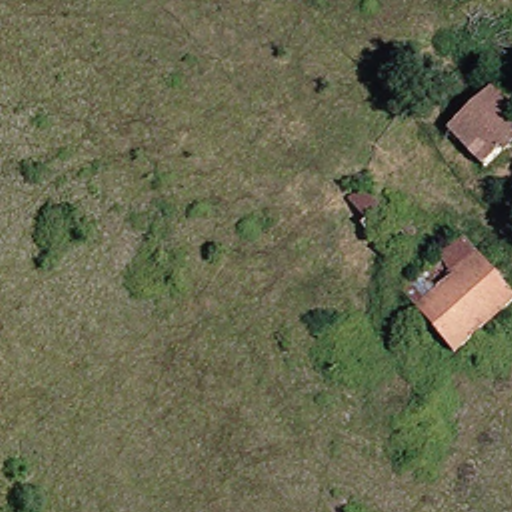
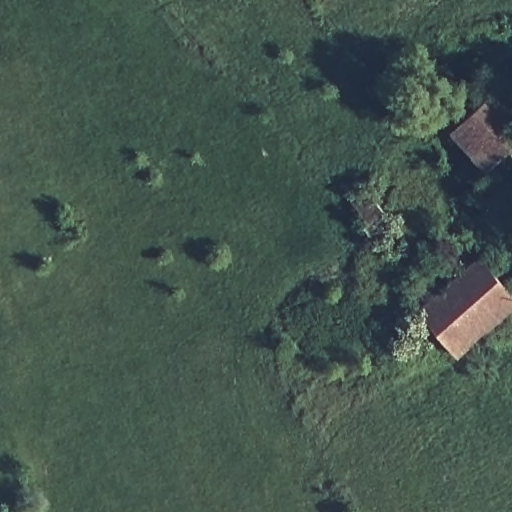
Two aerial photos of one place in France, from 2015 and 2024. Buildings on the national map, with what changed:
unchanged [(460,130),(503,90),(512,99),(512,155),(497,170),(460,130)]
unchanged [(368,187),(388,209),(366,225),(348,201),(368,187)]
unchanged [(484,255),(425,305),(408,288),(468,237),(484,255)]
unchanged [(512,300),(462,345),(425,305),(484,255),(512,287),(512,300)]

